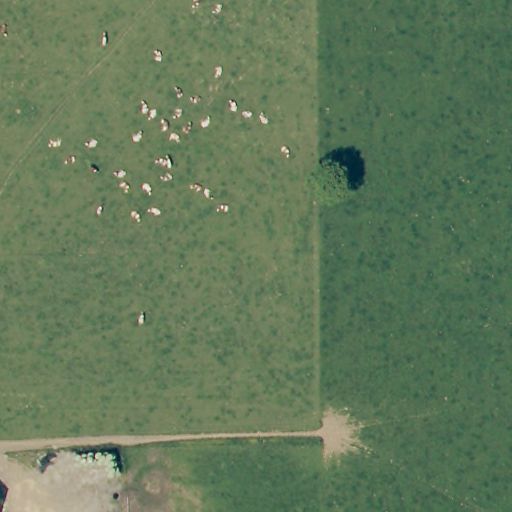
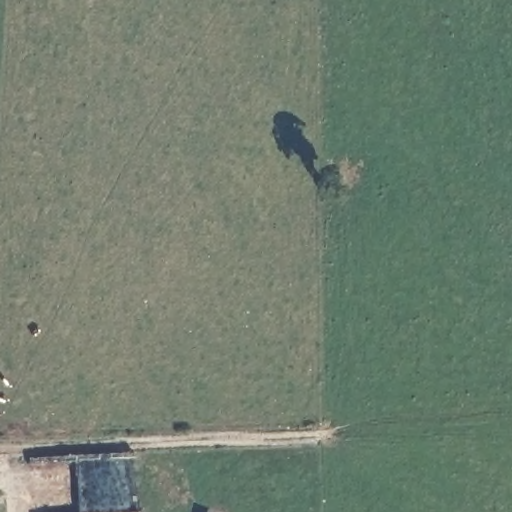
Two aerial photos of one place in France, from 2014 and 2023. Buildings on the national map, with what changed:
[]

